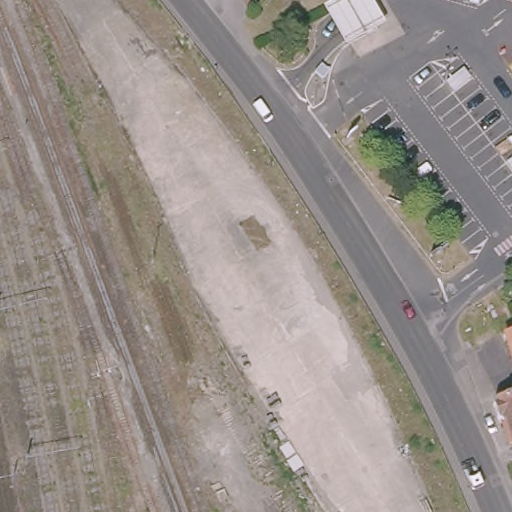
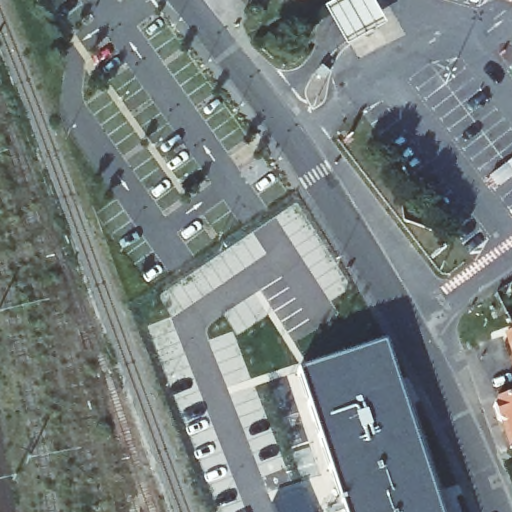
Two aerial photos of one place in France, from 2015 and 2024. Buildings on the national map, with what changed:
unchanged [(299,0),(302,0),(300,1),(299,0)]
unchanged [(362,0),(382,31),(352,46),(330,4),(336,0),(362,0)]
unchanged [(505,335),(512,333),(512,355),(505,335)]
new [(300,374),(383,347),(438,512),(345,512),(300,374)]
unchanged [(496,400),(512,395),(512,446),(504,423),(499,421),(493,406),(496,400)]

